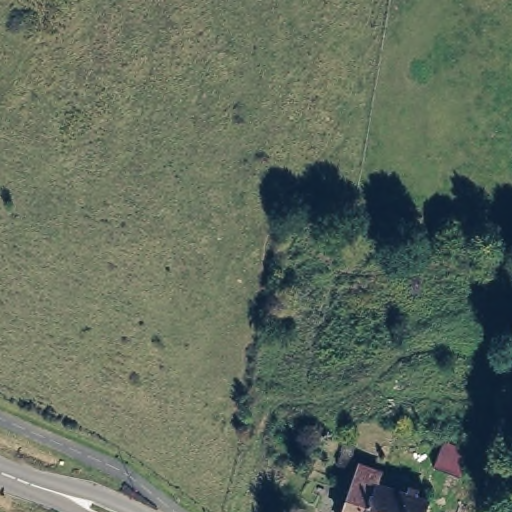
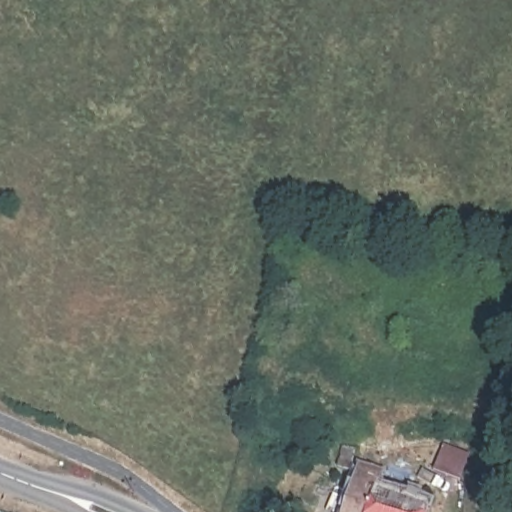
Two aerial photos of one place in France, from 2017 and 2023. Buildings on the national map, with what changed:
unchanged [(350,490),(346,489),(350,476),(362,479),(362,481),(414,498),(421,474),(432,478),(433,473),(440,475),(438,479),(442,481),(434,504),(437,504),(434,512),(344,512),(350,490)]

